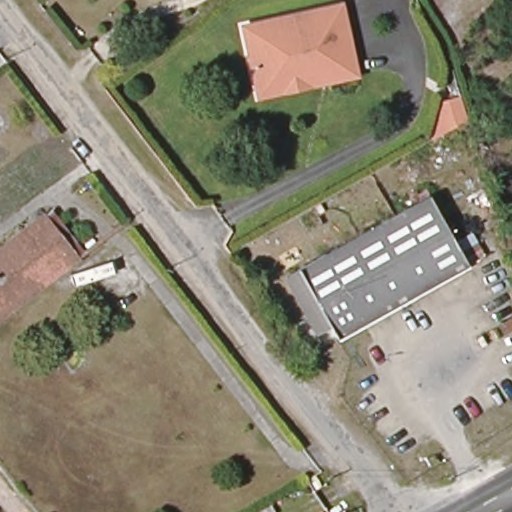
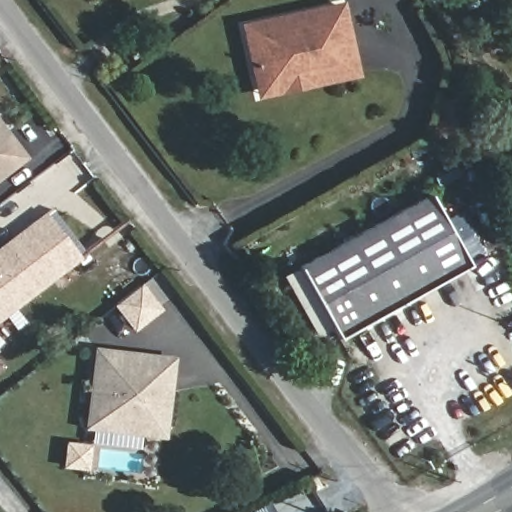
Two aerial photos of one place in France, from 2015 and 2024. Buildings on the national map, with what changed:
unchanged [(257,78),(247,24),(344,7),(356,75),(328,80),(259,92),(257,78)]
unchanged [(436,105),(455,97),(462,124),(430,141),(436,105)]
new [(0,178),(0,123),(26,157),(0,178)]
demolished [(77,161),(0,222),(0,178),(57,135),(77,161)]
unchanged [(426,197),(452,239),(472,228),(487,252),(339,336),(331,326),(317,334),(285,277),(426,197)]
unchanged [(85,258),(0,323),(0,255),(52,215),(85,258)]
new [(112,306),(139,286),(147,289),(163,310),(133,333),(112,306)]
new [(165,438),(83,429),(92,347),(176,357),(165,438)]

